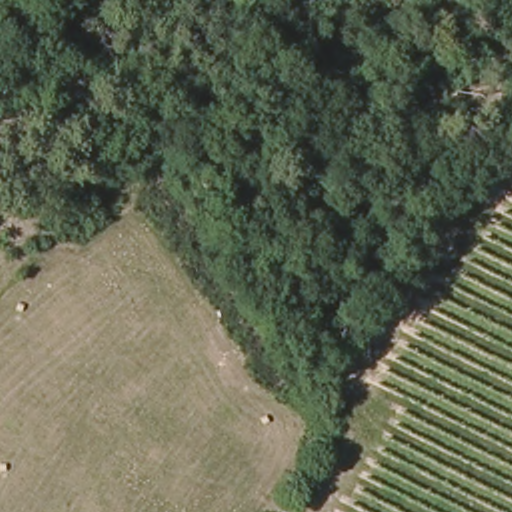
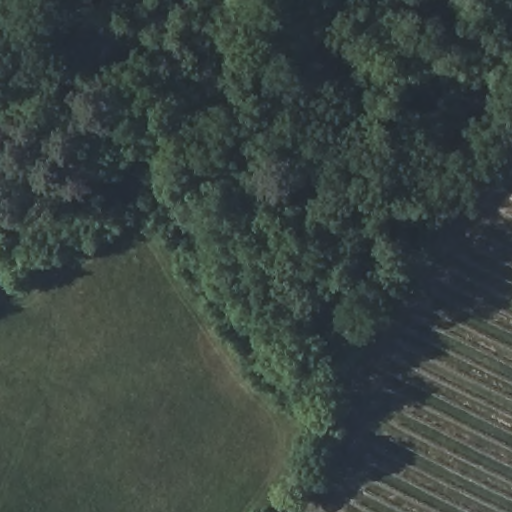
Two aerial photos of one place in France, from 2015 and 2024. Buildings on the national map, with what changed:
[]

